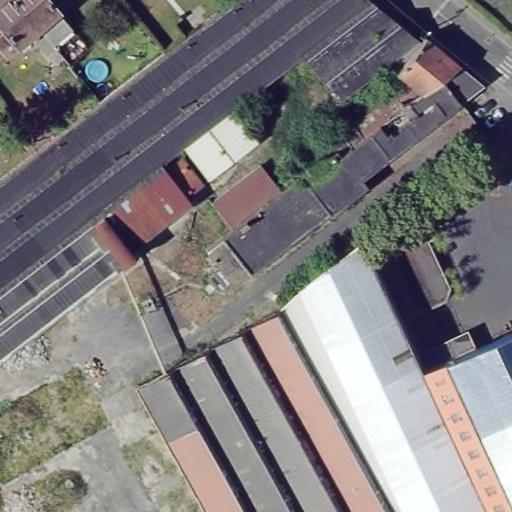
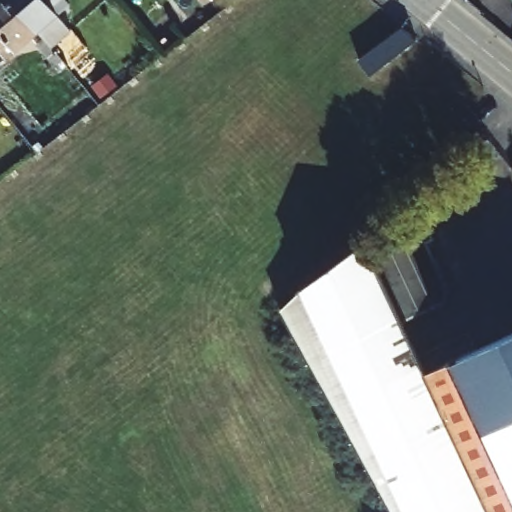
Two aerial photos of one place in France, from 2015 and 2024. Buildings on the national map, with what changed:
unchanged [(45,32),(39,26),(7,52),(0,44),(0,0),(70,0),(57,11),(71,29),(53,43),(62,55),(55,61),(37,39),(45,32)]
demolished [(211,180),(190,152),(187,147),(163,166),(167,170),(107,215),(0,296),(0,295),(0,188),(191,40),(241,0),(367,0),(377,9),(344,35),(307,62),(304,59),(235,111),(238,115),(260,142),(211,180)]
demolished [(344,35),(377,9),(404,32),(343,78),(327,90),(307,62),(344,35)]
demolished [(343,78),(404,32),(417,44),(420,46),(395,76),(381,90),(372,80),(339,106),(327,90),(343,78)]
demolished [(280,197),(311,174),(347,146),(342,138),(355,128),(374,113),(389,101),(381,90),(395,76),(420,46),(417,44),(425,39),(460,69),(483,87),(364,181),(370,189),(254,278),(227,240),(237,231),(280,197)]
demolished [(167,170),(169,171),(185,160),(205,185),(190,198),(195,205),(136,250),(30,332),(0,296),(107,215),(167,170)]
demolished [(217,206),(260,172),(280,197),(237,231),(217,206)]
unchanged [(309,355),(285,310),(370,244),(377,259),(418,240),(412,224),(424,218),(434,240),(427,244),(450,294),(445,302),(405,321),(423,360),(431,376),(448,367),(480,353),(512,338),(512,512),(396,512),(311,358),(309,355)]
demolished [(222,294),(213,282),(227,271),(236,283),(222,294)]
demolished [(0,296),(30,332),(0,354),(0,295),(0,296)]
demolished [(309,355),(311,358),(396,512),(347,512),(344,507),(305,437),(282,451),(270,457),(225,375),(211,351),(285,310),(309,355)]
demolished [(211,351),(225,375),(270,457),(282,451),(305,437),(344,507),(347,512),(202,512),(137,392),(211,351)]

